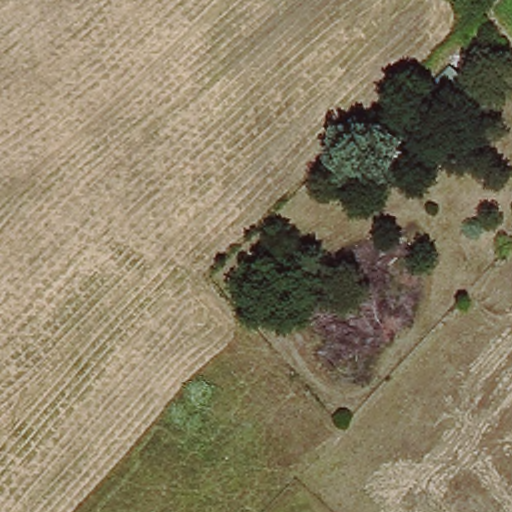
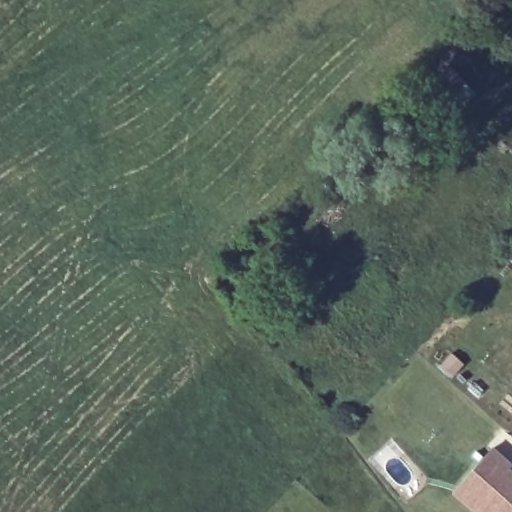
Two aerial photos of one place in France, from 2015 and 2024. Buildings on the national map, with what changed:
unchanged [(449,73),(475,101),(435,141),(407,113),(449,73)]
new [(492,451),(511,469),(508,473),(512,476),(512,512),(473,512),(452,493),(492,451)]

